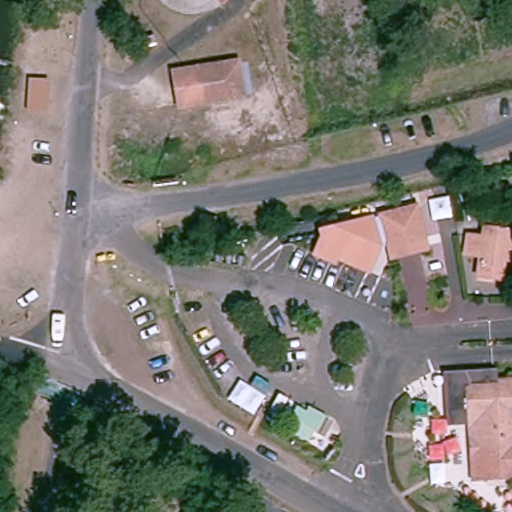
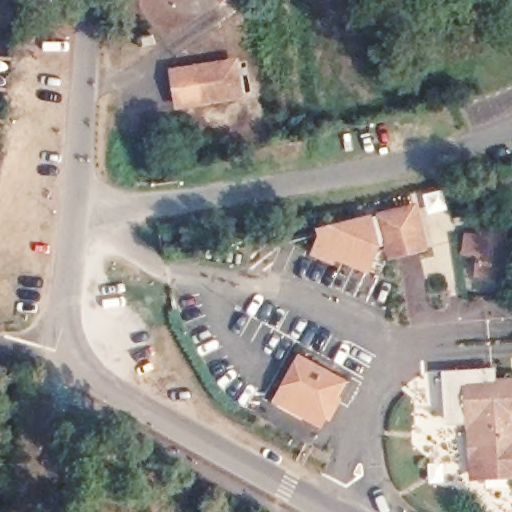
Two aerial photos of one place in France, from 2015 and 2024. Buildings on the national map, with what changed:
unchanged [(232,1),(230,0),(233,0),(232,1)]
unchanged [(229,63),(232,68),(245,66),(249,91),(233,94),(233,98),(190,104),(184,69),(229,63)]
unchanged [(394,253),(392,238),(386,208),(423,205),(428,235),(430,248),(394,253)]
unchanged [(383,246),(370,274),(341,261),(337,266),(313,254),(319,237),(316,231),(374,214),(383,246)]
unchanged [(507,230),(512,231),(512,250),(508,251),(509,265),(483,266),(483,253),(469,252),(468,232),(483,232),(482,216),(506,215),(507,230)]
unchanged [(218,229),(206,231),(206,222),(218,221),(218,229)]
new [(349,380),(341,396),(345,398),(333,420),(327,418),(322,427),(274,401),(300,353),(349,380)]
unchanged [(453,423),(448,368),(501,364),(501,371),(512,371),(512,475),(476,477),(472,424),(453,423)]

